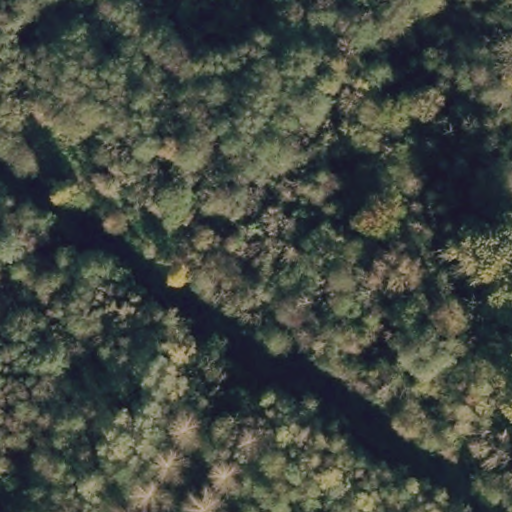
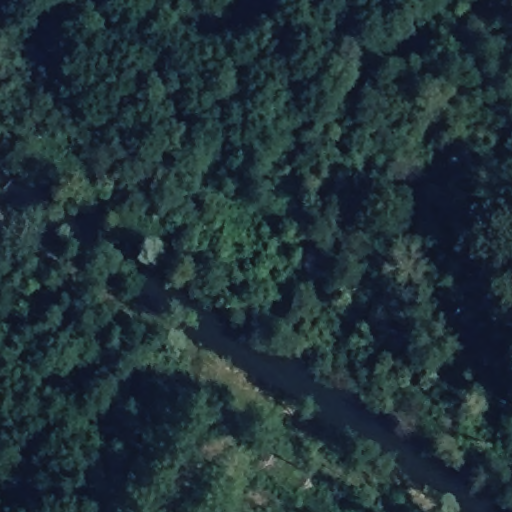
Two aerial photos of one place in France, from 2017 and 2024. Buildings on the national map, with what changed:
[]

